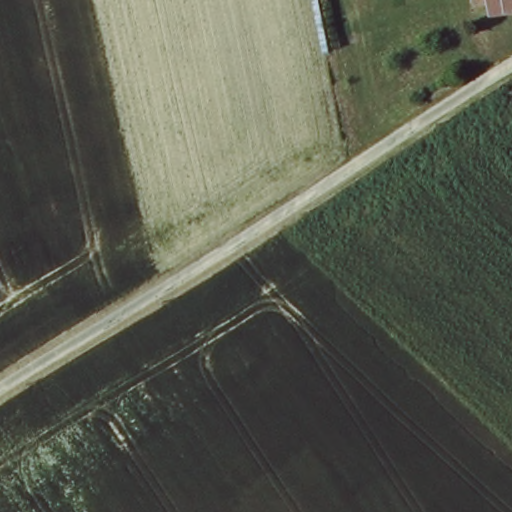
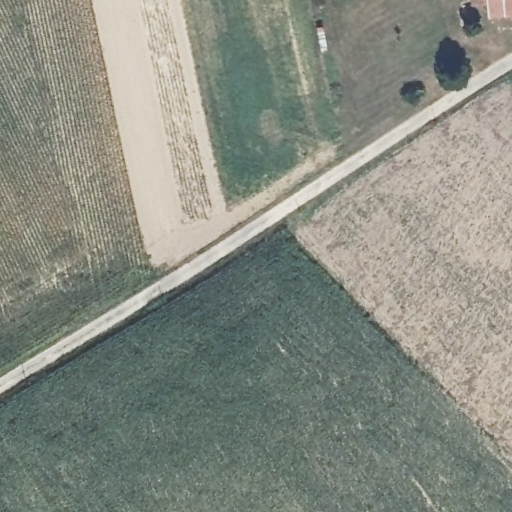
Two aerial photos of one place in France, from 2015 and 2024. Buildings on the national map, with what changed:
unchanged [(487,0),(512,0),(512,10),(487,10),(487,0)]

